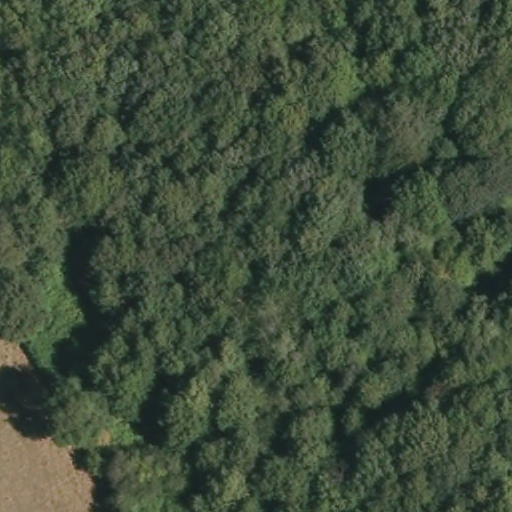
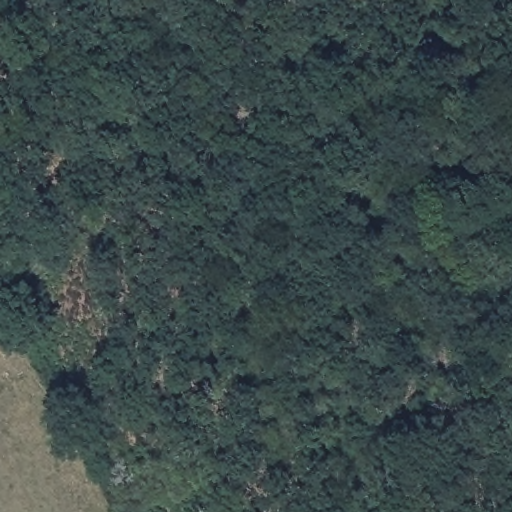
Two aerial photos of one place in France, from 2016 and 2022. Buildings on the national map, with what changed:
[]

